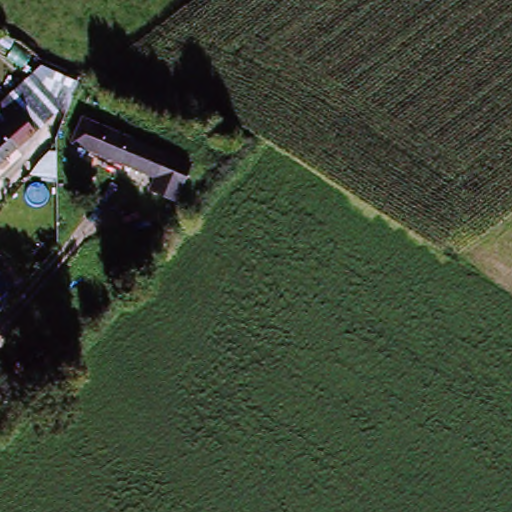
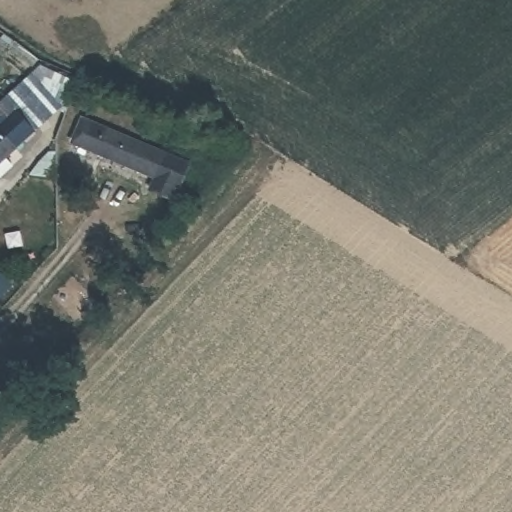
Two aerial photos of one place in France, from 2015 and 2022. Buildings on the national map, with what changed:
unchanged [(30,76),(35,71),(19,59),(25,50),(50,63),(70,78),(56,100),(61,105),(36,133),(0,164),(0,104),(30,76)]
unchanged [(155,148),(190,163),(175,199),(150,188),(155,175),(100,151),(110,129),(155,148)]

